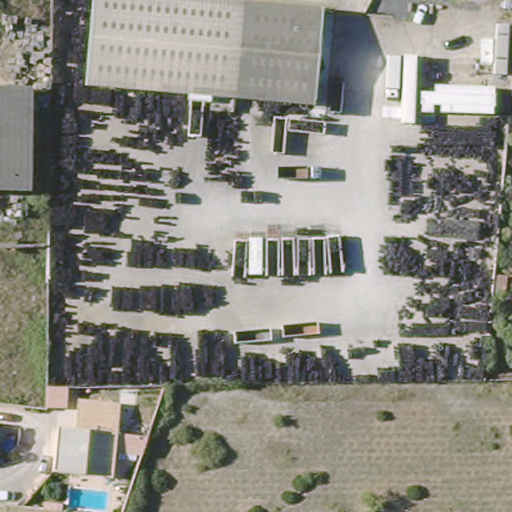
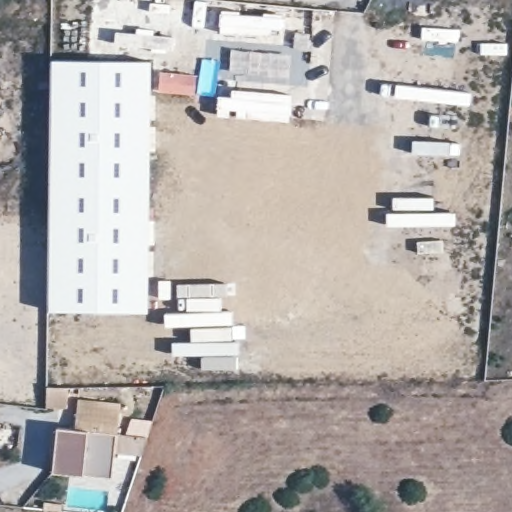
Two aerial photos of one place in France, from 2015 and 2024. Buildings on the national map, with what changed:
demolished [(83,56),(90,0),(187,0),(242,5),(237,94),(90,82),(81,82),(83,56)]
demolished [(321,11),(315,100),(237,94),(242,5),(321,11)]
new [(50,57),(152,61),(150,201),(152,235),(147,312),(48,310),(50,57)]
new [(159,71),(198,75),(196,92),(196,95),(157,91),(159,71)]
new [(48,390),(65,390),(65,408),(49,408),(48,390)]
unchanged [(56,425),(75,426),(78,397),(123,402),(120,431),(148,433),(142,455),(112,452),(111,475),(52,469),(56,425)]

